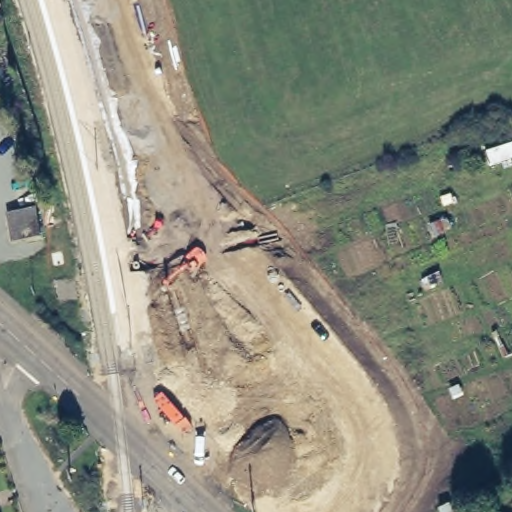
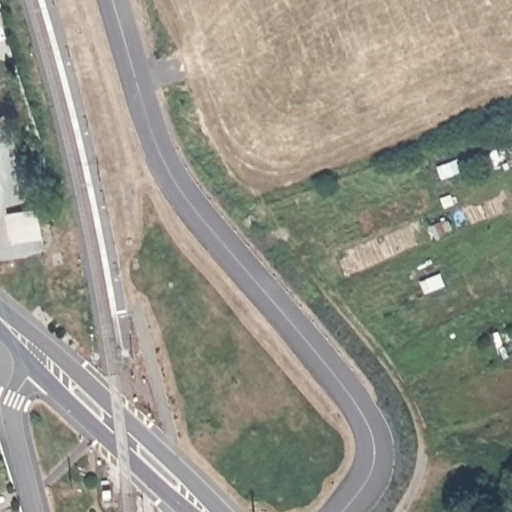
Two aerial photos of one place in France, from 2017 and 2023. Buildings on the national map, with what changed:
unchanged [(20,240),(14,211),(43,202),(49,233),(20,240)]

